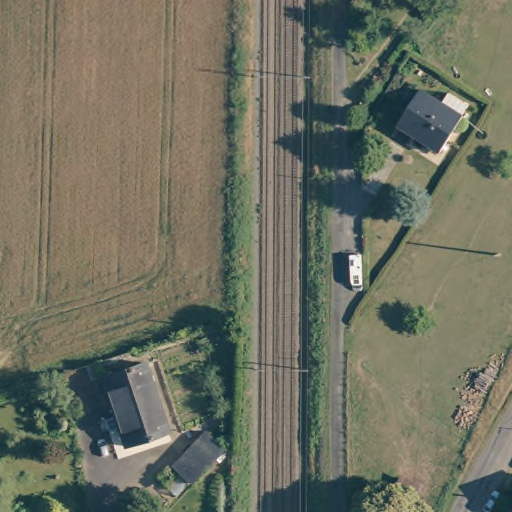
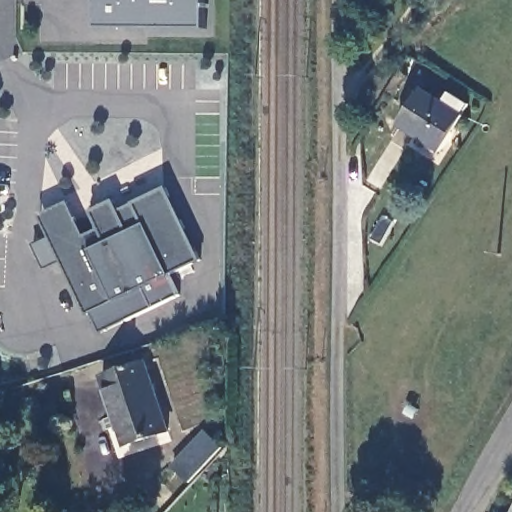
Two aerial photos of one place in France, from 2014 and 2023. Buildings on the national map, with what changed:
new [(96,0),(205,0),(205,30),(96,29),(96,0)]
unchanged [(395,98),(386,93),(398,72),(408,76),(395,98)]
unchanged [(416,90),(437,103),(443,93),(461,105),(455,116),(457,117),(438,150),(395,123),(416,90)]
new [(90,311),(85,313),(40,217),(69,201),(85,236),(99,229),(90,212),(115,200),(119,210),(167,187),(201,262),(170,275),(180,296),(101,333),(90,311)]
unchanged [(144,361),(167,431),(125,445),(101,375),(144,361)]
unchanged [(194,482),(177,466),(210,431),(227,446),(194,482)]
unchanged [(224,471),(219,476),(211,470),(216,465),(224,471)]
unchanged [(411,512),(402,512),(387,505),(392,494),(415,503),(411,512)]

